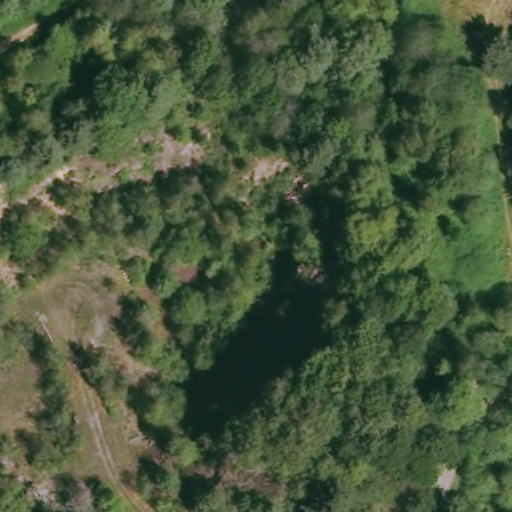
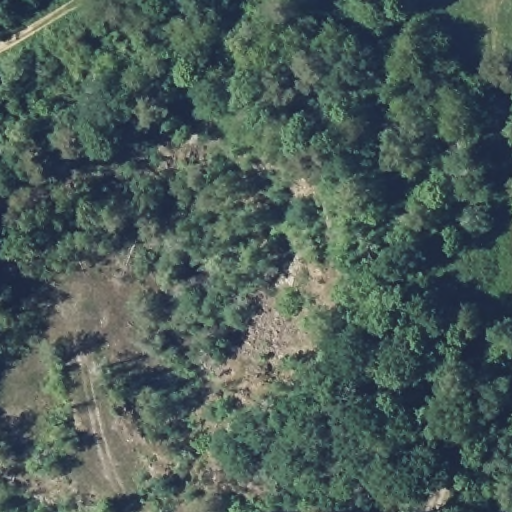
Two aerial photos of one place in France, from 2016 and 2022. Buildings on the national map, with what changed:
[]

